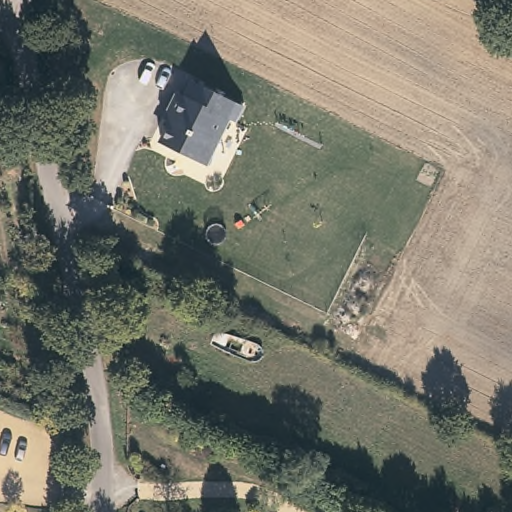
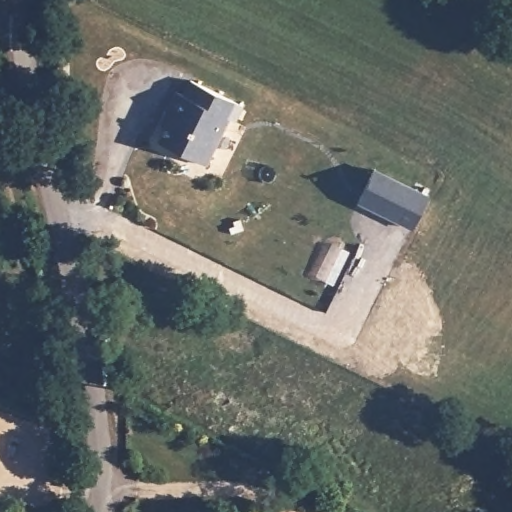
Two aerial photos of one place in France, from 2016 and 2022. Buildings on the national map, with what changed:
unchanged [(168,121),(161,117),(177,89),(185,92),(190,81),(245,108),(239,123),(229,119),(207,166),(157,141),(168,121)]
new [(373,167),(427,193),(411,227),(357,201),(373,167)]

